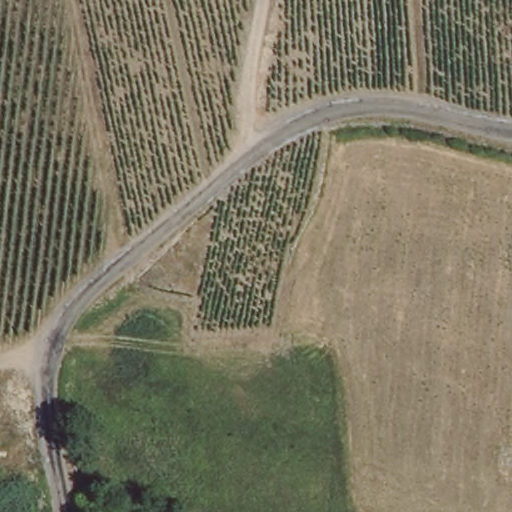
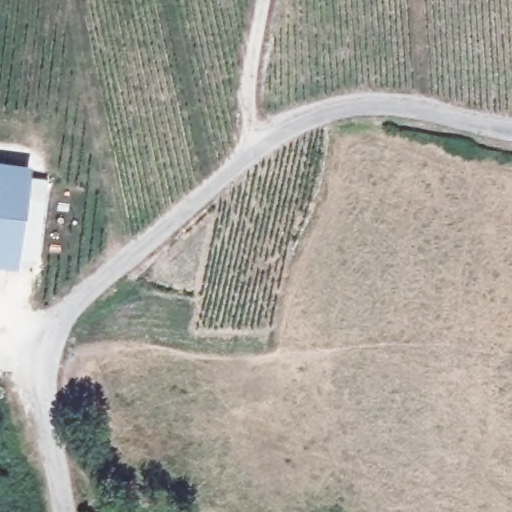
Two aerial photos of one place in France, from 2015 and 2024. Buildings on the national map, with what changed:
new [(31,168),(18,271),(0,269),(0,164),(31,168)]

